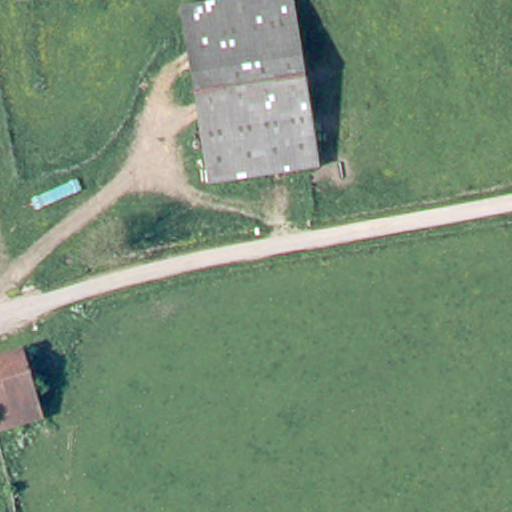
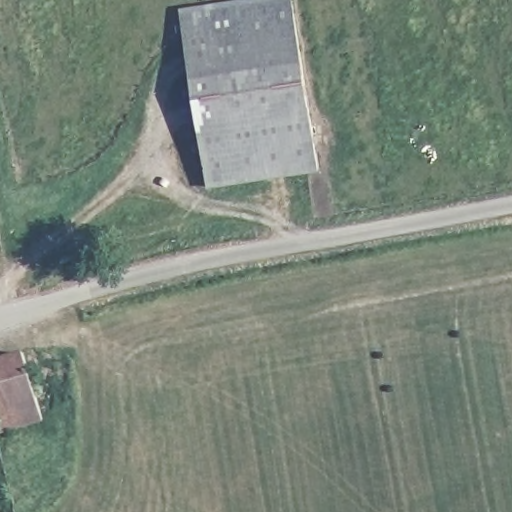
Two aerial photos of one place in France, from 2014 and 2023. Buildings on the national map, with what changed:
unchanged [(295,0),(321,173),(212,190),(184,14),(264,0),(295,0)]
unchanged [(4,433),(0,420),(0,362),(32,353),(39,377),(52,420),(4,433)]

